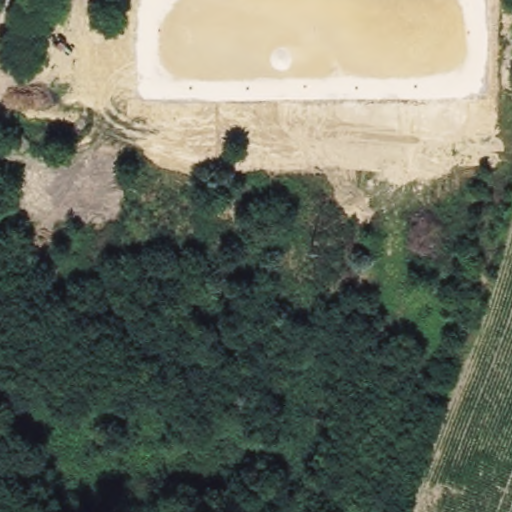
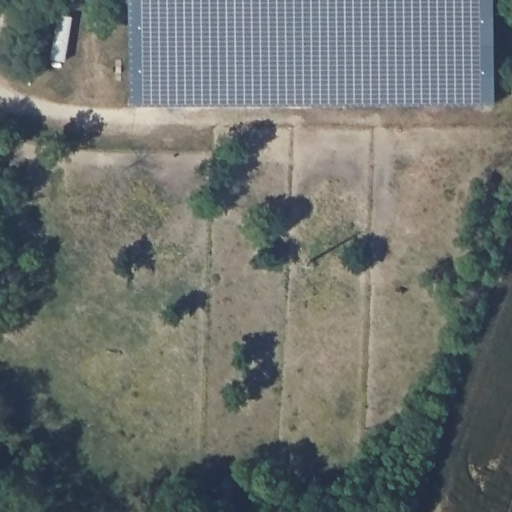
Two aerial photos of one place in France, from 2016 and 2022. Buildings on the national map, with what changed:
new [(496,103),(131,103),(131,0),(496,0),(496,103)]

